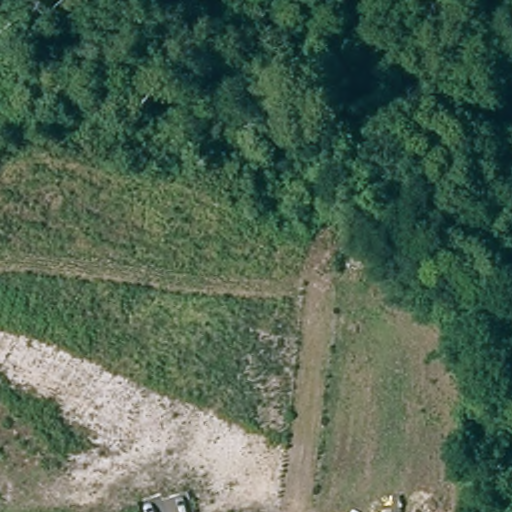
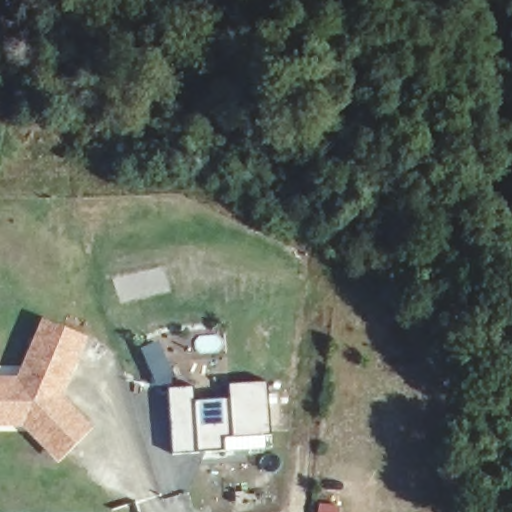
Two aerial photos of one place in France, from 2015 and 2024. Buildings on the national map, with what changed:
new [(0,378),(18,378),(43,317),(89,337),(63,397),(95,427),(60,464),(24,427),(0,427),(0,378)]
new [(230,384),(267,381),(271,435),(225,437),(225,451),(173,454),(169,389),(195,387),(196,402),(232,401),(230,384)]

